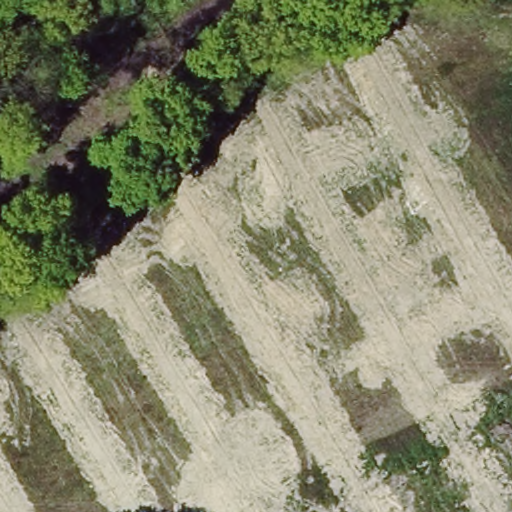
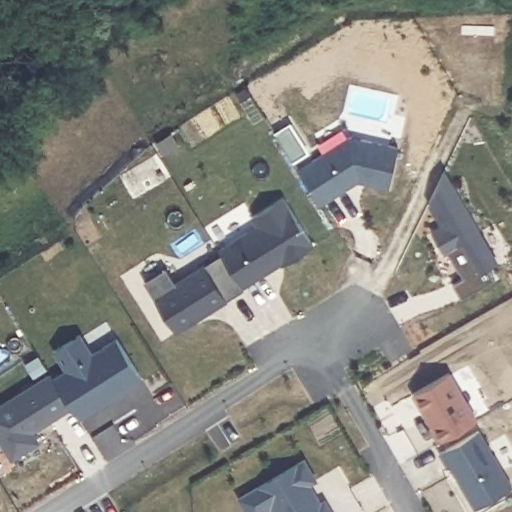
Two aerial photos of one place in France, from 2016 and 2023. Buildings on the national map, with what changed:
new [(351,141),(399,151),(390,193),(358,185),(335,200),(312,165),(351,141)]
new [(489,268),(495,278),(460,298),(452,283),(464,277),(447,250),(445,251),(432,230),(441,225),(428,202),(445,169),(498,262),(489,268)]
new [(257,229),(252,221),(283,201),(314,250),(283,270),(280,265),(273,269),(275,272),(243,292),(219,253),(257,229)]
new [(166,271),(176,287),(205,268),(227,304),(176,336),(144,284),(166,271)]
new [(68,373),(55,352),(80,337),(92,357),(117,341),(142,381),(116,397),(115,394),(91,408),(93,412),(79,421),(55,381),(68,373)]
new [(40,441),(12,458),(0,439),(0,400),(35,379),(25,361),(39,353),(50,370),(52,375),(65,367),(68,373),(55,381),(70,407),(33,430),(40,441)]
new [(438,443),(428,426),(431,425),(411,392),(451,369),(479,418),(438,443)]
new [(478,435),(511,493),(479,512),(474,512),(450,471),(448,472),(440,457),(478,435)]
new [(304,464),(315,484),(308,488),(320,508),(325,505),(328,512),(272,512),(271,510),(268,512),(246,512),(240,502),(304,464)]

